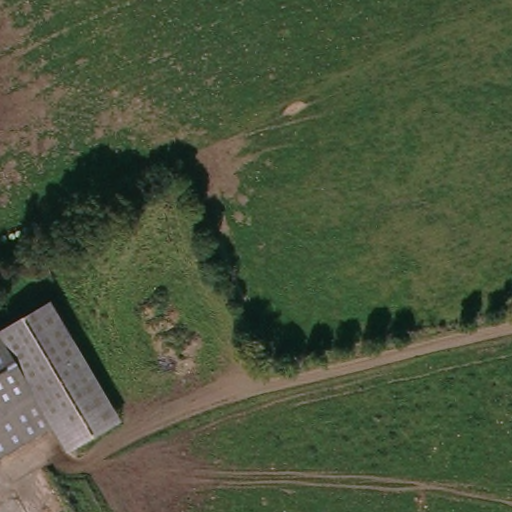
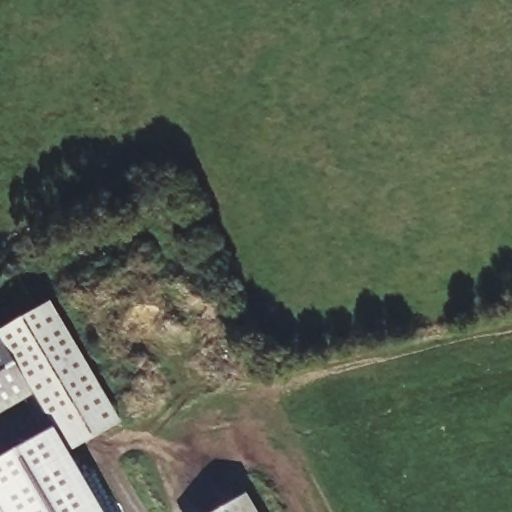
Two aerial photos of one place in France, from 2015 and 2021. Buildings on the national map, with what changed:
unchanged [(50,302),(119,422),(64,453),(50,427),(0,457),(0,332),(50,302)]
new [(0,512),(0,457),(50,427),(64,453),(68,450),(104,512),(0,512)]
new [(257,512),(217,512),(246,494),(257,512)]

